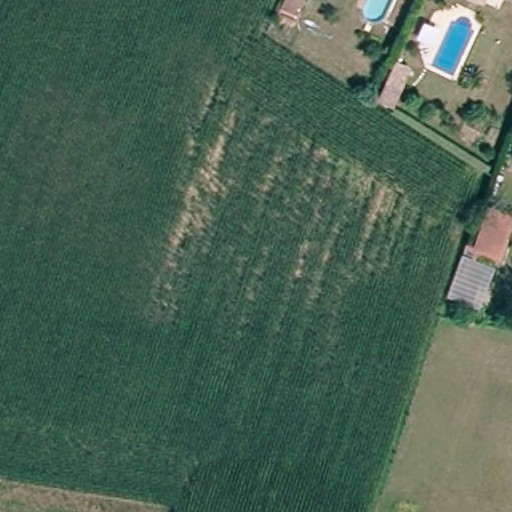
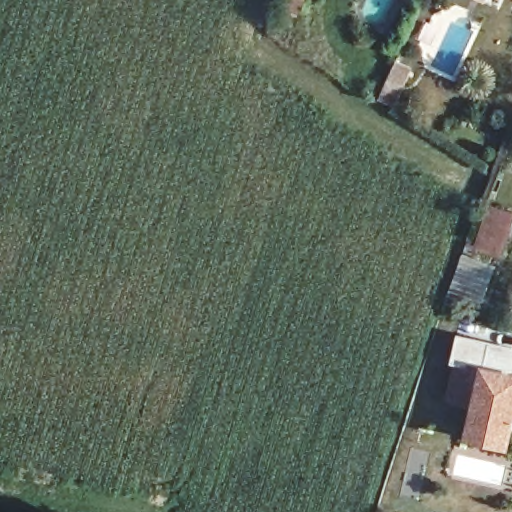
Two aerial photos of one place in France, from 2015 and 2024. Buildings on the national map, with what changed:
unchanged [(383,100),(399,68),(412,74),(397,106),(383,100)]
unchanged [(495,204),(512,210),(512,221),(501,252),(480,245),(477,256),(464,252),(468,241),(480,245),(495,204)]
new [(472,404),(448,398),(457,363),(450,361),(458,332),(491,342),(512,347),(512,355),(507,375),(512,377),(512,416),(512,415),(507,432),(504,444),(465,433),(468,421),(472,404)]

